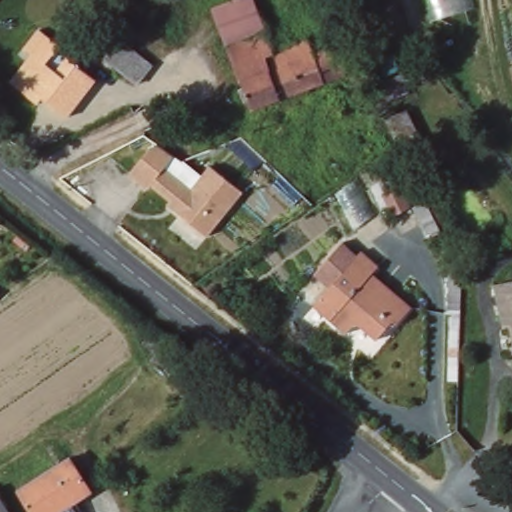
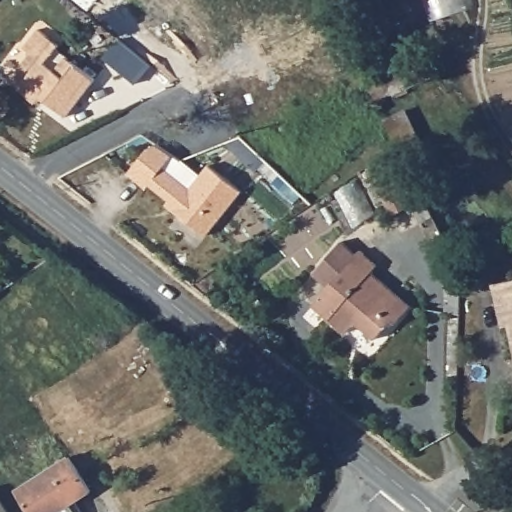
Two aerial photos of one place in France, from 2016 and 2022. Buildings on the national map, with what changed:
demolished [(320,69),(326,84),(255,109),(211,10),(237,0),(246,0),(271,52),(309,41),(311,47),(320,69)]
unchanged [(54,50),(49,59),(85,89),(58,122),(32,100),(28,103),(3,83),(25,57),(19,52),(35,34),(54,50)]
unchanged [(135,87),(105,58),(121,40),(150,68),(135,87)]
new [(425,61),(436,74),(377,103),(369,88),(425,61)]
demolished [(210,109),(214,107),(224,103),(227,107),(229,114),(228,115),(216,120),(210,109)]
unchanged [(405,113),(422,149),(402,158),(397,147),(386,123),(385,122),(405,113)]
unchanged [(164,204),(168,197),(151,185),(148,189),(126,172),(154,139),(173,155),(165,166),(192,185),(208,163),(243,189),(205,235),(164,204)]
unchanged [(383,184),(399,176),(409,199),(392,207),(391,208),(381,185),(383,184)]
unchanged [(360,254),(379,269),(373,277),(414,312),(398,332),(391,327),(336,283),(360,254)]
unchanged [(391,327),(376,344),(362,332),(350,332),(345,339),(312,312),(336,283),(391,327)]
unchanged [(512,328),(511,321),(502,323),(496,288),(512,284),(512,328)]
unchanged [(88,491),(56,512),(28,512),(15,492),(67,459),(88,491)]
unchanged [(5,512),(0,512),(0,503),(5,512)]

